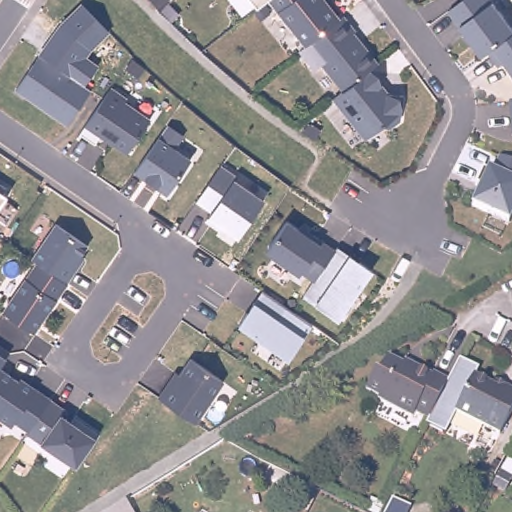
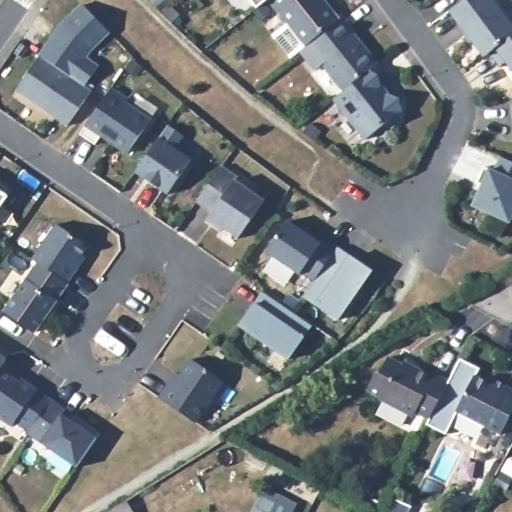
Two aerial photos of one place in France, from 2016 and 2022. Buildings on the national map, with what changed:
unchanged [(342,15),(377,65),(369,71),(340,94),(319,69),(315,72),(300,53),(305,49),(267,1),(255,11),(247,0),(324,0),(339,17),(342,15)]
unchanged [(493,52),(483,59),(448,12),(465,0),(492,0),(512,26),(512,77),(493,52)]
unchanged [(110,34),(93,51),(88,58),(99,66),(84,89),(91,93),(68,127),(16,91),(59,26),(82,4),(110,34)]
unchanged [(403,96),(400,119),(389,127),(381,127),(366,140),(334,99),(340,94),(369,71),(388,95),(403,96)]
unchanged [(128,100),(125,102),(150,120),(151,120),(126,156),(85,127),(111,90),(128,100)]
unchanged [(509,103),(512,103),(512,133),(509,103)]
unchanged [(182,137),(175,149),(193,162),(170,198),(136,175),(168,127),(182,137)]
unchanged [(512,162),(512,223),(511,227),(471,209),(487,170),(493,172),(499,157),(512,162)]
unchanged [(264,202),(238,239),(192,206),(220,167),(264,202)]
unchanged [(0,212),(0,182),(13,191),(0,212)]
unchanged [(322,244),(323,242),(324,241),(370,272),(338,321),(304,297),(313,283),(267,255),(289,220),(322,244)]
unchanged [(92,247),(56,303),(35,335),(0,312),(23,277),(26,281),(38,265),(31,260),(56,223),(92,247)]
unchanged [(313,326),(289,362),(238,328),(262,291),(313,326)]
unchanged [(0,368),(0,356),(6,360),(0,368)]
unchanged [(196,423),(161,402),(189,360),(222,383),(196,423)]
unchanged [(417,415),(414,420),(380,403),(381,400),(368,393),(376,377),(380,379),(388,362),(416,376),(418,371),(434,378),(435,377),(451,384),(448,390),(432,422),(417,415)]
unchanged [(446,437),(429,428),(432,422),(448,390),(451,384),(462,362),(481,373),(477,380),(458,416),(446,437)]
unchanged [(99,432),(76,470),(40,445),(12,427),(0,420),(0,369),(36,392),(99,432)]
unchanged [(477,380),(494,388),(497,384),(512,392),(512,422),(504,439),(458,416),(477,380)]
unchanged [(122,503),(127,512),(108,512),(122,503)]

